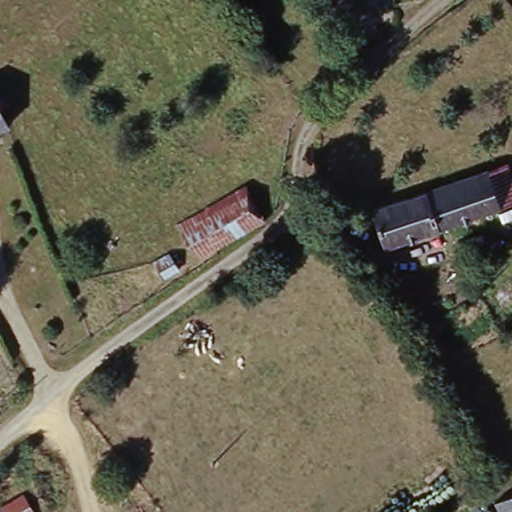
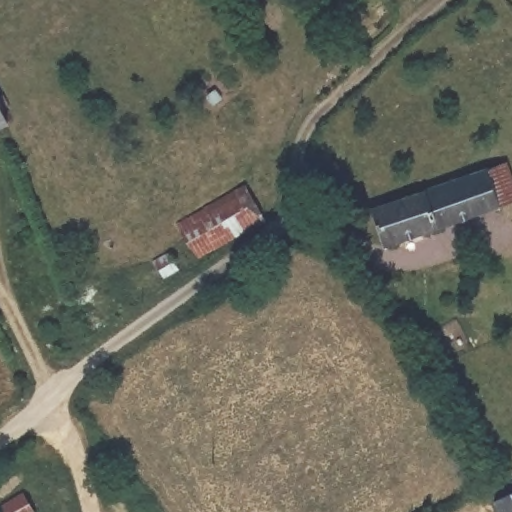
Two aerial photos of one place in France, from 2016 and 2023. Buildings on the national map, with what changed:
unchanged [(0,116),(5,125),(0,129),(0,116)]
unchanged [(376,209),(485,172),(509,165),(512,176),(512,200),(496,205),(388,244),(376,209)]
unchanged [(204,265),(179,229),(243,184),(265,219),(204,265)]
unchanged [(177,271),(164,279),(155,265),(168,258),(177,271)]
unchanged [(2,512),(0,509),(25,493),(37,512),(2,512)]
unchanged [(505,499),(512,497),(512,512),(503,512),(500,502),(505,499)]

